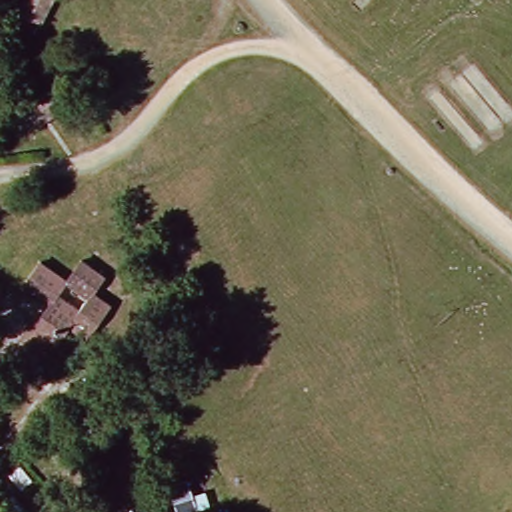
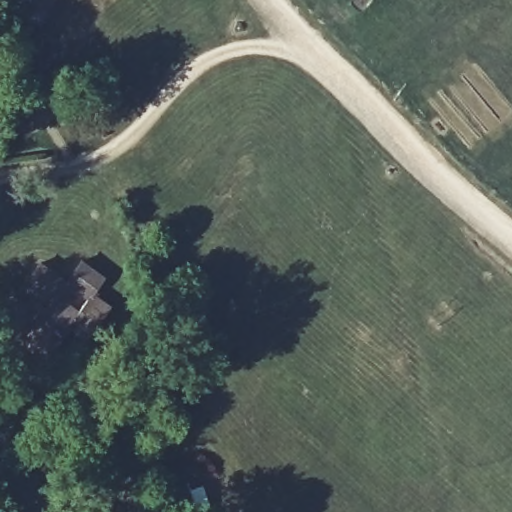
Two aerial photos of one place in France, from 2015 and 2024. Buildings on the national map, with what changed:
unchanged [(19,14),(27,0),(56,0),(49,12),(40,26),(29,20),(19,14)]
unchanged [(30,116),(25,106),(40,97),(57,87),(69,108),(49,119),(36,126),(30,116)]
unchanged [(35,334),(47,319),(43,316),(52,305),(28,286),(45,262),(69,281),(57,296),(76,312),(89,297),(70,281),(85,262),(107,281),(93,297),(110,313),(89,340),(74,330),(57,350),(48,362),(25,346),(35,334)]

